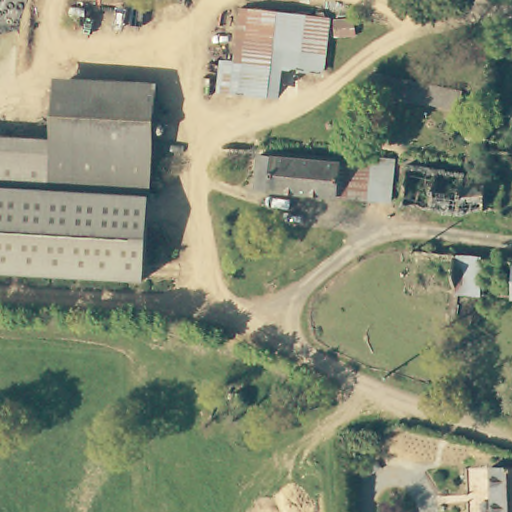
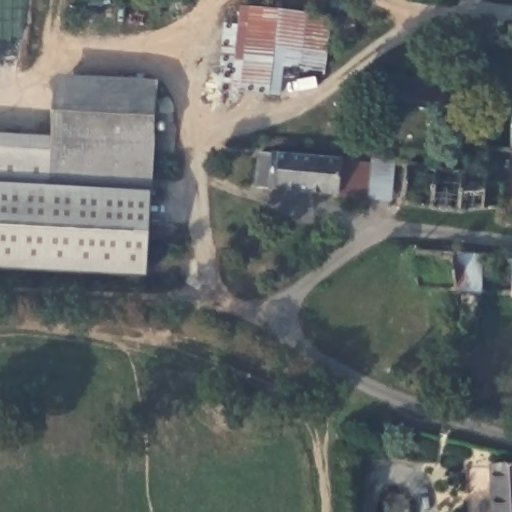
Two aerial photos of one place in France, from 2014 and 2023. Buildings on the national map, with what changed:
unchanged [(327,17),(321,70),(269,64),(233,61),(239,8),(327,17)]
unchanged [(266,96),(230,92),(233,61),(269,64),(266,96)]
unchanged [(458,94),(454,114),(367,93),(371,75),(458,94)]
unchanged [(51,94),(152,100),(149,152),(48,146),(51,94)]
unchanged [(23,145),(17,274),(0,273),(0,143),(23,145)]
unchanged [(48,146),(149,152),(142,281),(17,274),(23,145),(48,146)]
unchanged [(381,199),(353,197),(273,191),(276,157),(355,164),(383,166),(381,199)]
unchanged [(398,205),(407,167),(486,176),(484,211),(462,213),(427,210),(398,205)]
unchanged [(476,256),(476,297),(452,294),(454,253),(476,256)]
unchanged [(243,390),(243,398),(240,403),(233,403),(228,398),(228,390),(243,390)]
unchanged [(489,472),(512,472),(512,512),(491,512),(489,472)]

